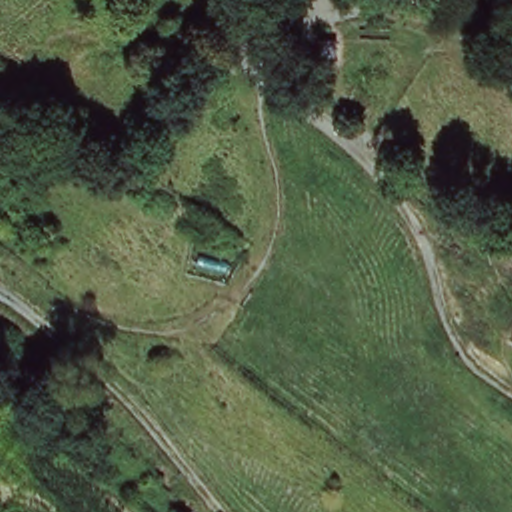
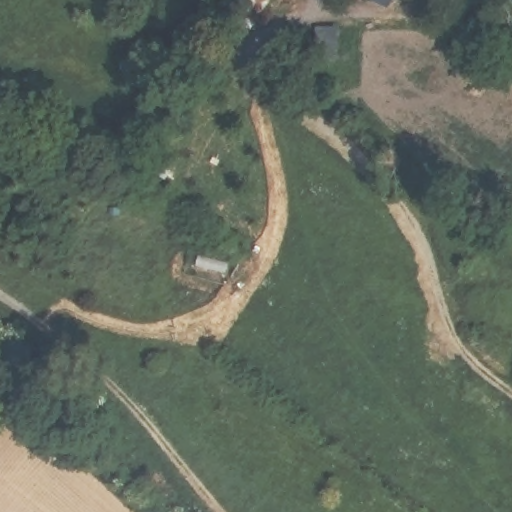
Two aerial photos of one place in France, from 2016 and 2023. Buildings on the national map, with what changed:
[]

